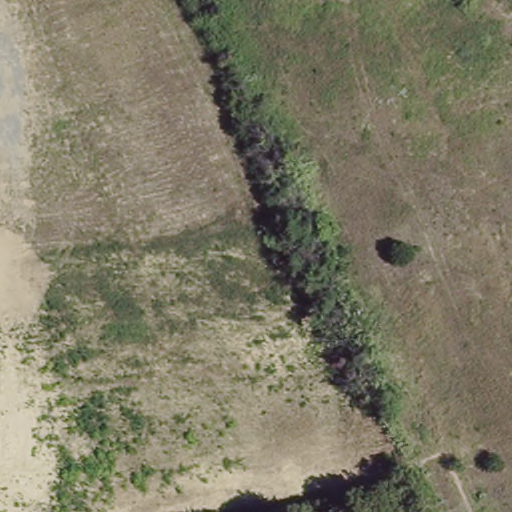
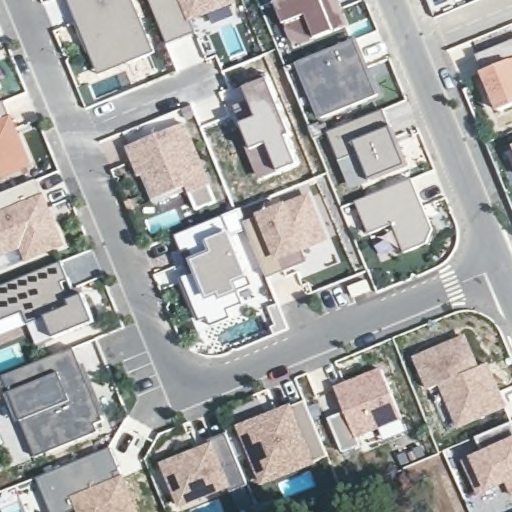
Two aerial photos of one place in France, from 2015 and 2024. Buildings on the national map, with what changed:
new [(96,67),(86,43),(81,31),(69,0),(133,0),(155,52),(131,62),(100,75),(96,67)]
new [(190,20),(195,33),(168,45),(150,0),(232,0),(233,3),(190,20)]
new [(330,1),(335,13),(341,16),(345,25),(340,27),(340,29),(317,39),(310,21),(288,30),(276,3),(283,0),(333,0),(330,1)]
new [(355,41),(377,96),(323,118),(300,63),(355,41)]
new [(512,107),(499,112),(476,56),(512,41),(512,107)]
new [(250,151),(239,119),(242,117),(252,112),(241,85),(266,76),(287,122),(299,164),(278,173),(259,180),(250,151)]
new [(5,102),(30,165),(0,178),(0,104),(5,102)]
new [(340,162),(327,133),(383,110),(390,128),(393,127),(410,168),(362,187),(361,184),(361,183),(350,188),(340,162)]
new [(185,191),(155,203),(143,176),(140,177),(127,148),(186,124),(211,185),(209,186),(216,203),(196,211),(185,191)]
new [(36,180),(48,209),(43,211),(45,216),(50,214),(62,243),(0,268),(0,196),(36,180)]
new [(393,226),(371,233),(358,204),(412,180),(434,230),(426,243),(405,252),(393,226)]
new [(307,197),(325,239),(302,249),(305,256),(298,259),(301,265),(268,279),(245,223),(307,197)]
new [(228,310),(231,318),(211,327),(200,300),(192,304),(181,278),(191,274),(183,253),(176,236),(202,225),(222,217),(223,216),(248,277),(252,286),(238,292),(243,304),(228,310)]
new [(62,262),(69,278),(72,287),(75,287),(78,293),(82,291),(94,319),(52,336),(43,316),(26,323),(0,333),(0,288),(62,262)]
new [(478,369),(487,365),(491,374),(506,407),(457,428),(440,387),(428,392),(415,360),(465,339),(478,369)]
new [(82,365),(86,363),(107,414),(102,415),(105,420),(90,426),(94,435),(52,452),(38,418),(25,423),(6,377),(75,348),(82,365)]
new [(345,412),(336,389),(382,370),(402,418),(356,437),(360,446),(343,453),(329,419),(345,412)]
new [(290,408),(305,401),(328,457),(263,483),(240,428),(282,411),(290,408)]
new [(193,447),(210,441),(227,434),(247,485),(231,492),(230,488),(181,507),(164,465),(195,452),(193,447)]
new [(480,450),(500,441),(512,436),(512,495),(510,496),(505,483),(477,495),(461,460),(467,457),(480,450)]
new [(67,512),(54,512),(40,479),(110,450),(121,476),(125,475),(139,512),(76,512),(75,509),(67,512)]

